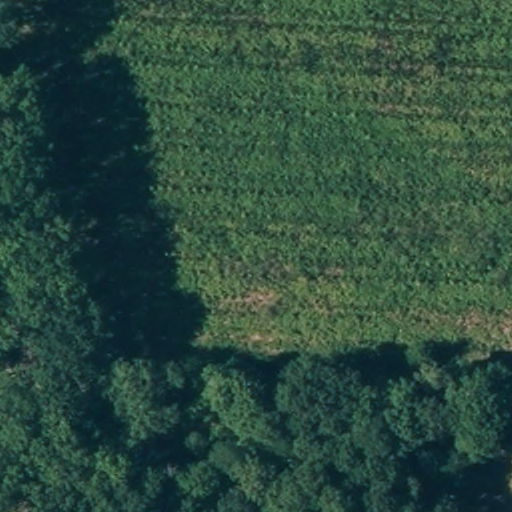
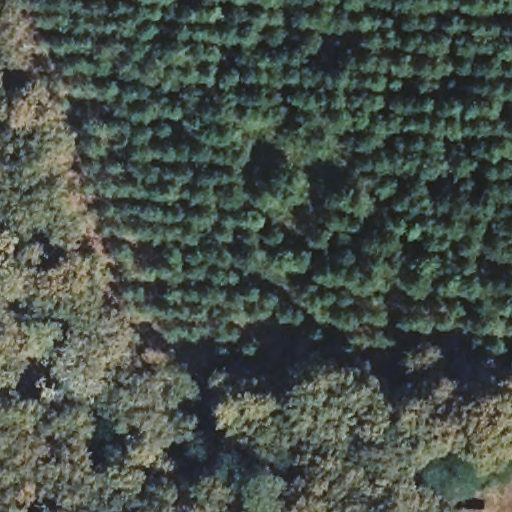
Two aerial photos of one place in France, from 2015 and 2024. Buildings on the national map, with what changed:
unchanged [(457,512),(457,507),(486,506),(486,512),(457,512)]

